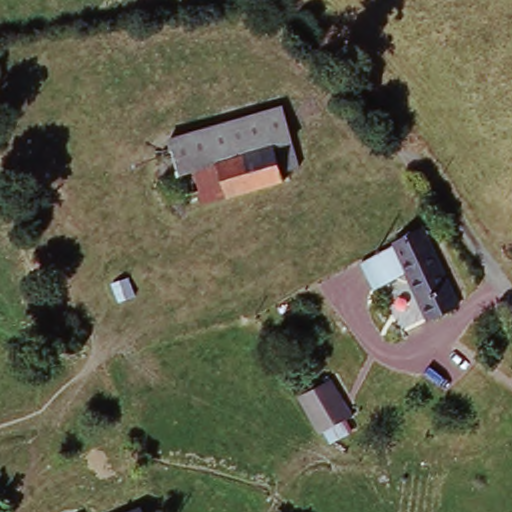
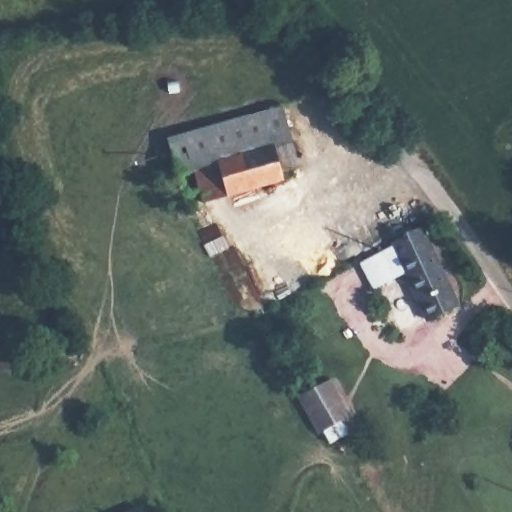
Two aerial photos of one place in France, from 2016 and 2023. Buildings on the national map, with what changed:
unchanged [(284,100),(309,161),(290,166),(295,175),(213,203),(211,195),(193,205),(168,141),(284,100)]
unchanged [(424,230),(455,306),(426,317),(409,271),(375,281),(362,260),(397,246),(395,241),(424,230)]
unchanged [(133,286),(142,303),(120,310),(114,292),(133,286)]
unchanged [(325,387),(344,426),(315,439),(295,399),(325,387)]
unchanged [(145,511),(145,512),(143,512),(145,511)]

